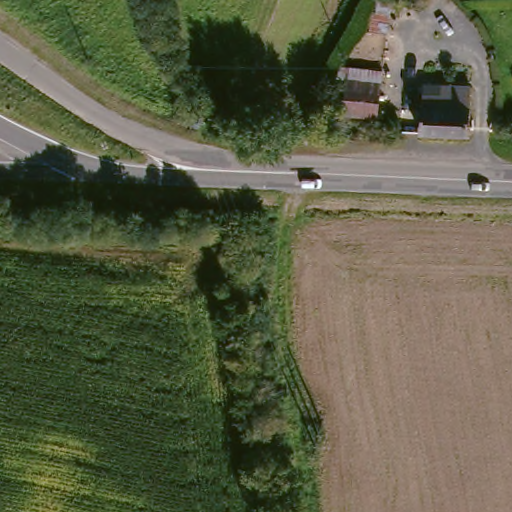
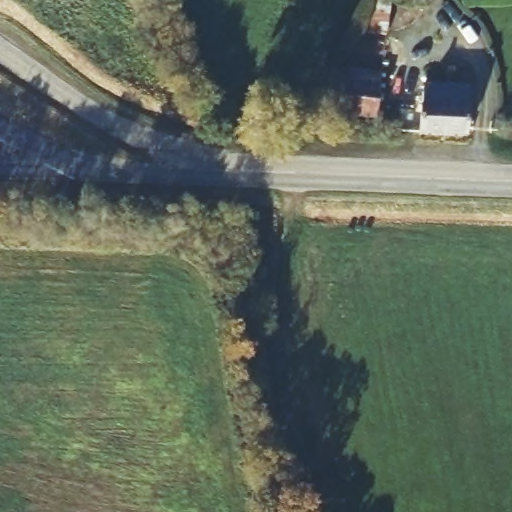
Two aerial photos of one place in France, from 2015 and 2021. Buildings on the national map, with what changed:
unchanged [(379,116),(333,113),(334,65),(382,68),(379,116)]
unchanged [(419,133),(422,85),(471,88),(469,134),(419,133)]

